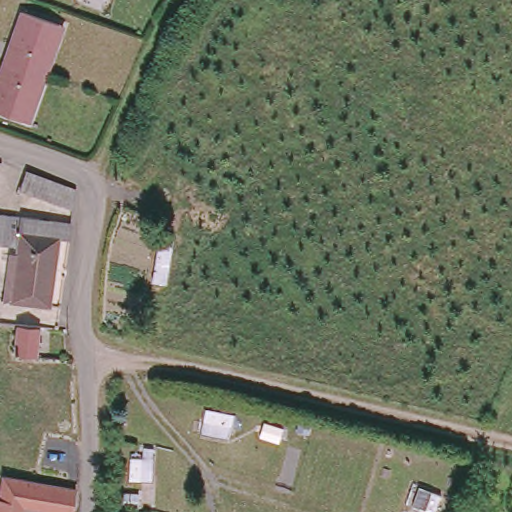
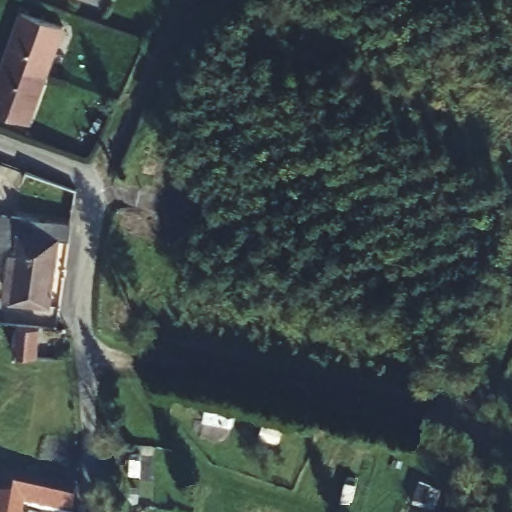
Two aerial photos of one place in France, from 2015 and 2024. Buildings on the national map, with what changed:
unchanged [(37,68),(11,56),(10,56),(27,11),(67,28),(50,74),(50,75),(37,68)]
unchanged [(33,122),(0,110),(0,83),(10,57),(10,56),(11,56),(37,68),(50,75),(33,122)]
unchanged [(73,186),(70,205),(18,195),(20,178),(73,186)]
unchanged [(72,234),(60,233),(50,300),(7,295),(12,242),(0,240),(0,213),(26,214),(24,229),(32,229),(34,216),(75,220),(72,234)]
unchanged [(40,325),(38,356),(14,355),(15,324),(40,325)]
unchanged [(2,490),(5,475),(52,485),(52,492),(72,498),(77,500),(75,512),(47,512),(29,508),(28,512),(0,512),(0,490),(2,490)]

